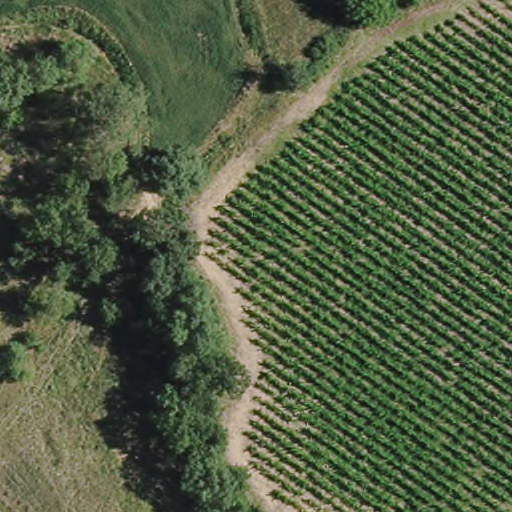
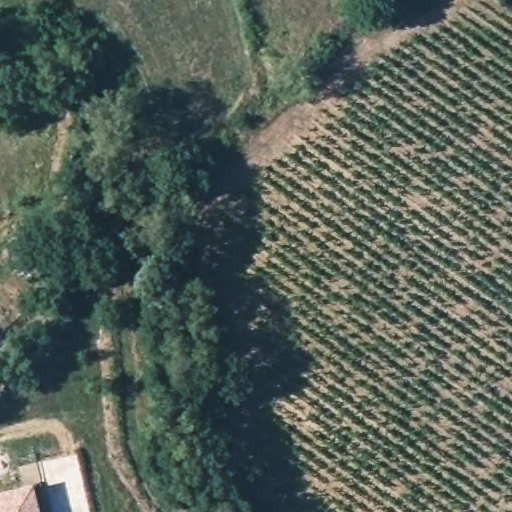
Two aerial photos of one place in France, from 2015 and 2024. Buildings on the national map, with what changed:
new [(0,512),(0,492),(32,484),(39,512),(0,512)]

